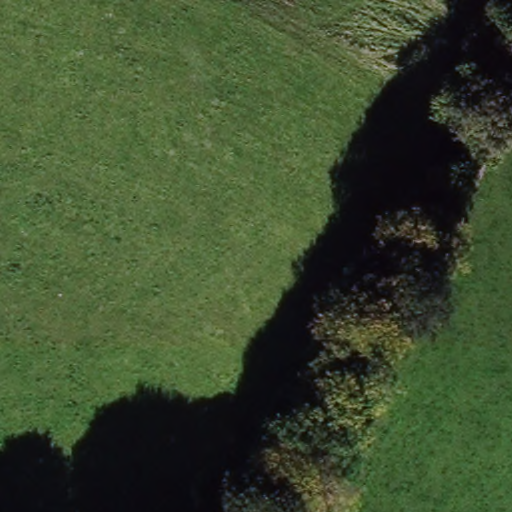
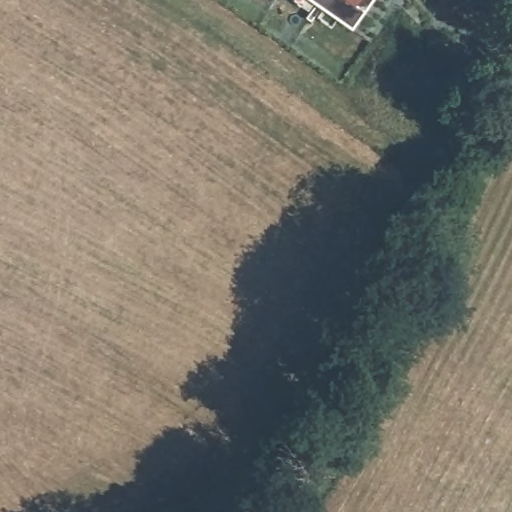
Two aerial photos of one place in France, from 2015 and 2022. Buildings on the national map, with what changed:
new [(352,32),(306,0),(375,0),(352,32)]

